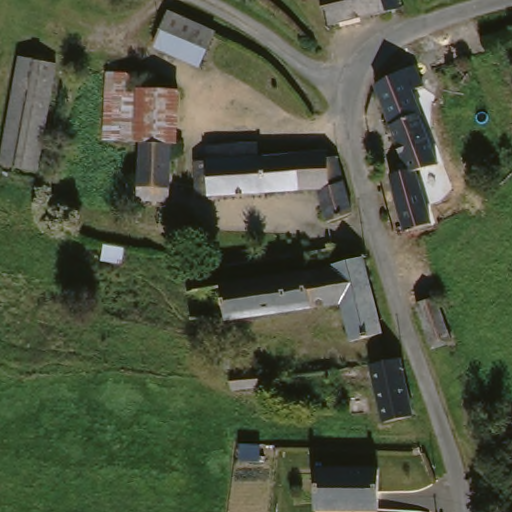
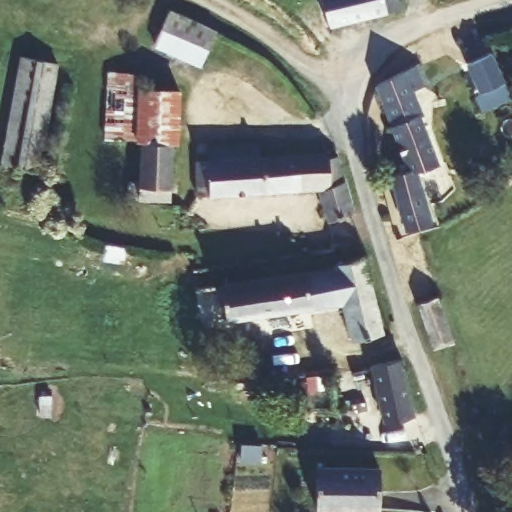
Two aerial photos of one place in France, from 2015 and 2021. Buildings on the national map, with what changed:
unchanged [(322,0),(397,0),(399,10),(330,29),(322,0)]
unchanged [(166,25),(210,46),(201,64),(158,42),(166,25)]
new [(464,65),(491,52),(512,96),(512,97),(482,112),(474,95),(478,93),(464,65)]
unchanged [(37,173),(0,166),(0,163),(10,105),(18,59),(54,66),(37,173)]
unchanged [(417,73),(424,94),(414,98),(423,123),(440,173),(419,181),(429,226),(427,227),(420,229),(406,234),(392,177),(409,170),(377,88),(417,73)]
unchanged [(102,146),(104,79),(135,79),(135,93),(174,95),(174,149),(168,148),(138,147),(102,146)]
unchanged [(321,190),(199,197),(197,163),(209,161),(209,149),(259,145),(260,159),(329,156),(330,160),(339,159),(353,213),(328,215),(321,190)]
unchanged [(125,190),(135,190),(138,147),(168,148),(168,205),(139,204),(125,204),(125,190)]
unchanged [(334,270),(333,267),(351,264),(366,260),(386,334),(353,342),(349,333),(343,307),(230,324),(191,323),(188,297),(195,295),(334,270)]
unchanged [(418,307),(438,299),(454,343),(434,351),(418,307)]
unchanged [(402,361),(413,418),(386,424),(374,369),(402,361)]
unchanged [(231,379),(256,376),(257,385),(257,391),(233,394),(231,379)]
unchanged [(256,466),(237,464),(238,449),(258,451),(256,466)]
unchanged [(511,466),(512,465),(512,468),(511,466)]
unchanged [(378,472),(376,512),(316,512),(318,469),(378,472)]

